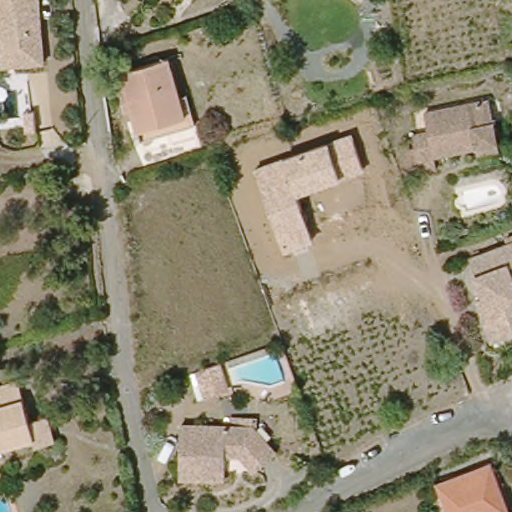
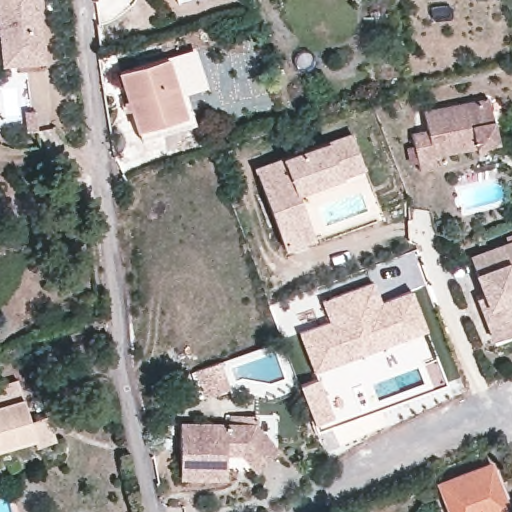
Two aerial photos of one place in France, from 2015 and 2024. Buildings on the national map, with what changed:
unchanged [(39,0),(45,64),(2,67),(0,43),(0,0),(39,0)]
unchanged [(167,57),(179,95),(186,118),(141,134),(120,73),(167,57)]
unchanged [(477,160),(474,152),(434,162),(437,172),(423,175),(413,141),(426,138),(419,119),(486,101),(498,145),(501,153),(477,160)]
unchanged [(254,170),(284,159),(329,142),(353,135),(364,170),(341,177),(299,194),(314,240),(285,251),(254,170)]
unchanged [(487,309),(489,307),(473,268),(512,253),(512,344),(503,348),(487,309)]
new [(327,319),(320,300),(373,280),(380,299),(411,288),(427,329),(381,348),(314,373),(297,331),(327,319)]
unchanged [(201,391),(191,362),(216,352),(222,370),(214,372),(216,386),(201,391)]
new [(317,376),(333,415),(313,422),(298,384),(317,376)]
unchanged [(18,378),(24,398),(28,416),(49,411),(54,438),(38,442),(36,439),(0,447),(0,383),(18,378)]
unchanged [(219,476),(177,475),(179,421),(253,426),(273,449),(253,463),(238,449),(222,447),(221,468),(219,476)]
unchanged [(512,512),(451,512),(441,485),(495,464),(512,506),(512,512)]

